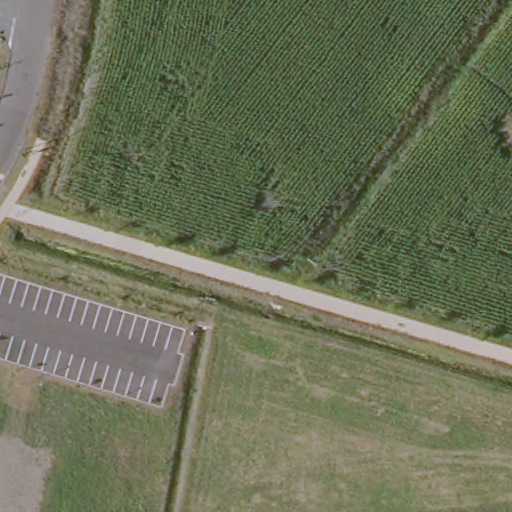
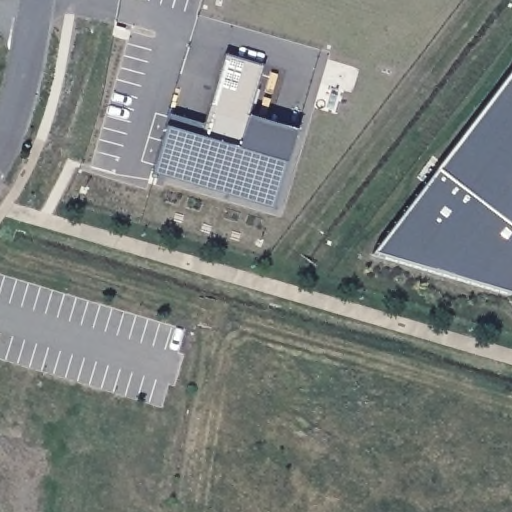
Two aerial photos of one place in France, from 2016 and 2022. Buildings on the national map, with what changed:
new [(248,117),(297,130),(273,210),(152,174),(166,127),(170,115),(205,126),(225,53),(262,66),(248,117)]
new [(440,171),(512,75),(512,227),(440,171)]
new [(372,258),(440,171),(512,227),(512,301),(372,258)]

